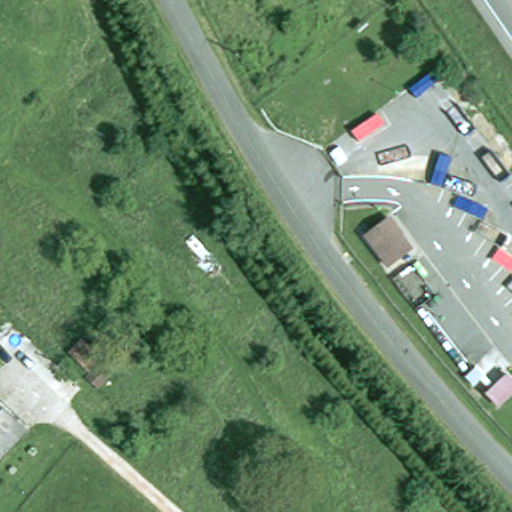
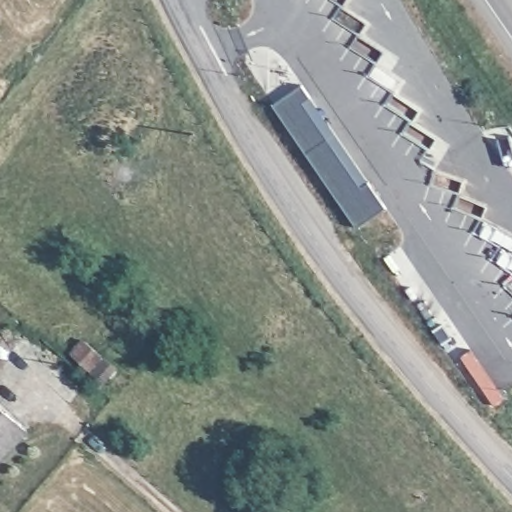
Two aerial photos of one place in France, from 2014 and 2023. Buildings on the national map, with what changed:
new [(357,228),(275,104),(303,85),(387,208),(357,228)]
demolished [(388,221),(413,248),(386,268),(364,238),(388,221)]
unchanged [(0,464),(0,406),(29,432),(0,464)]

